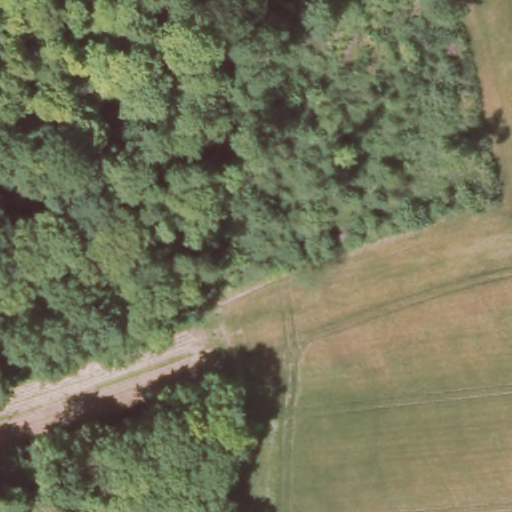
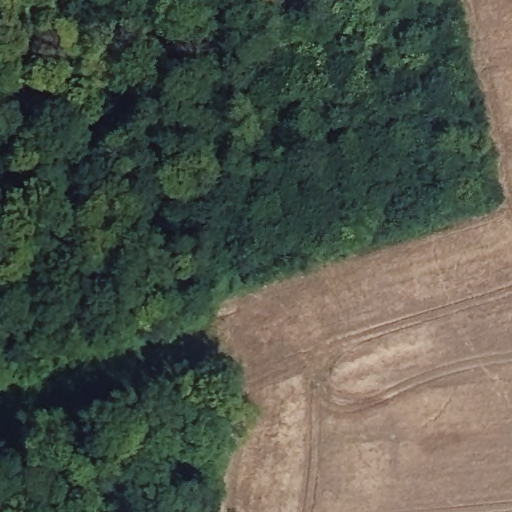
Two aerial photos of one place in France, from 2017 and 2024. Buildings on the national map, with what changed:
unchanged [(128,478),(137,475),(135,466),(147,462),(155,481),(132,489),(128,478)]

